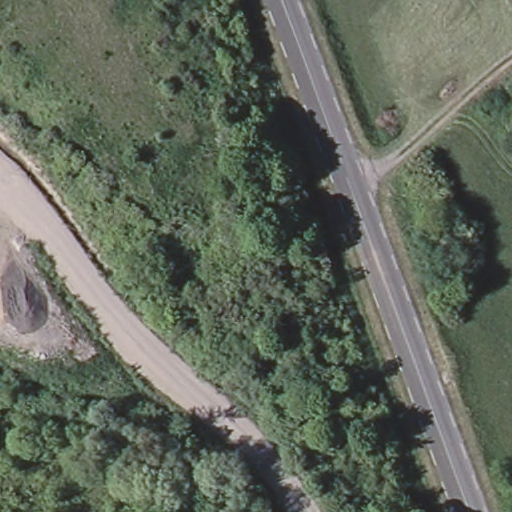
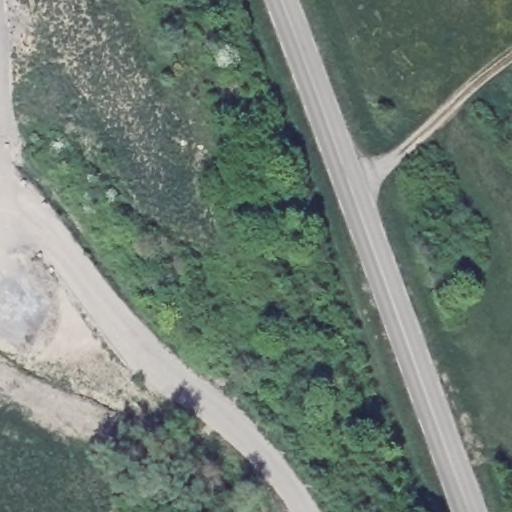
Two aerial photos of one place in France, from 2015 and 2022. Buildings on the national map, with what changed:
unchanged [(426,242),(435,240),(447,270),(437,273),(430,276),(418,246),(426,242)]

